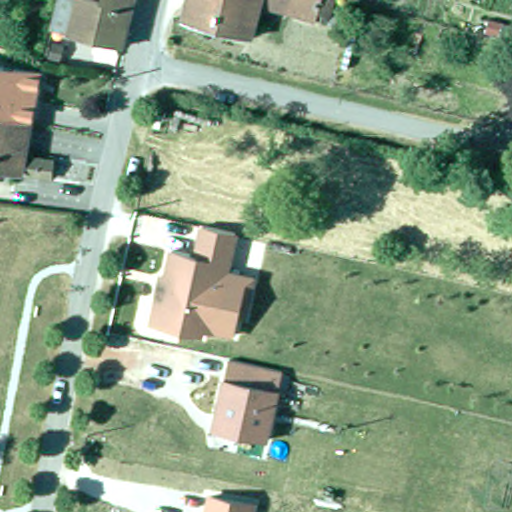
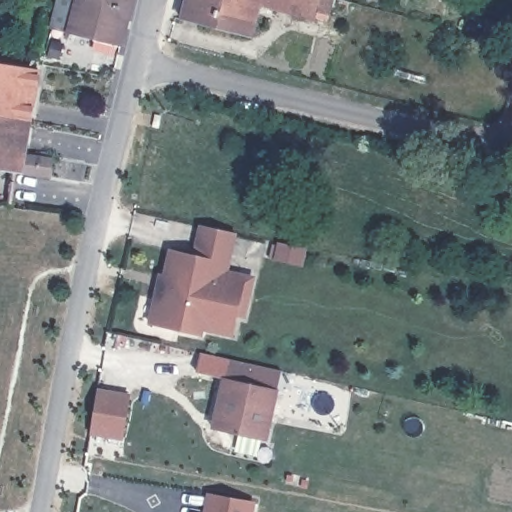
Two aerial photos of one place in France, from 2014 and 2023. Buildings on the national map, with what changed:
unchanged [(50,28),(56,5),(57,0),(100,0),(133,0),(121,45),(68,32),(50,28)]
unchanged [(184,20),(189,0),(261,0),(332,0),(329,15),(323,14),(321,20),(260,5),(251,37),(184,20)]
unchanged [(0,115),(0,63),(39,70),(33,104),(31,117),(30,120),(0,115)]
unchanged [(25,155),(51,159),(48,176),(0,168),(0,115),(30,120),(25,155)]
unchanged [(193,253),(200,222),(238,234),(233,268),(256,275),(253,291),(243,290),(236,326),(226,337),(205,331),(202,339),(148,325),(159,272),(166,273),(170,249),(193,253)]
unchanged [(283,368),(269,443),(216,433),(233,355),(283,368)]
new [(124,440),(90,435),(98,387),(131,392),(124,440)]
unchanged [(256,501),(254,512),(205,512),(209,490),(256,501)]

